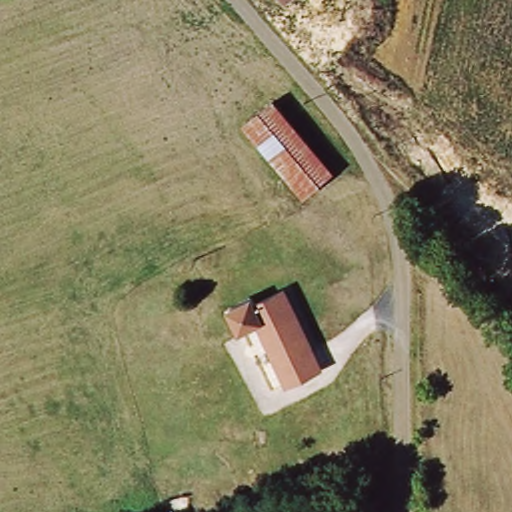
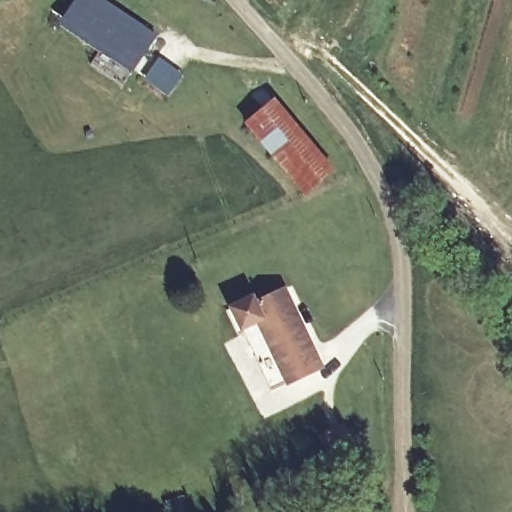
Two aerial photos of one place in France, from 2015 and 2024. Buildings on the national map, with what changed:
new [(132,73),(58,24),(75,0),(102,0),(155,35),(132,73)]
unchanged [(250,131),(278,106),(335,168),(309,194),(250,131)]
unchanged [(234,301),(254,295),(257,300),(289,290),(317,375),(284,385),(262,318),(243,325),(234,301)]

